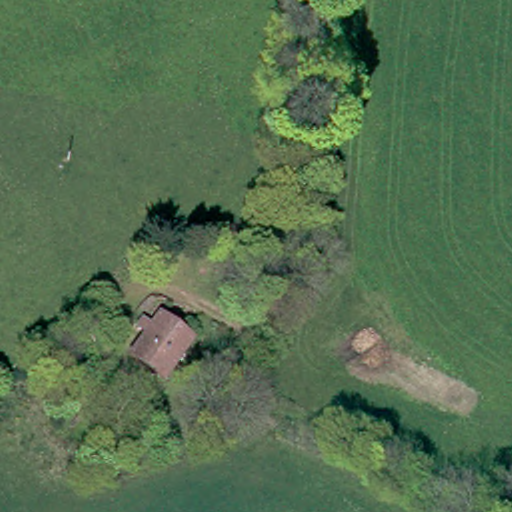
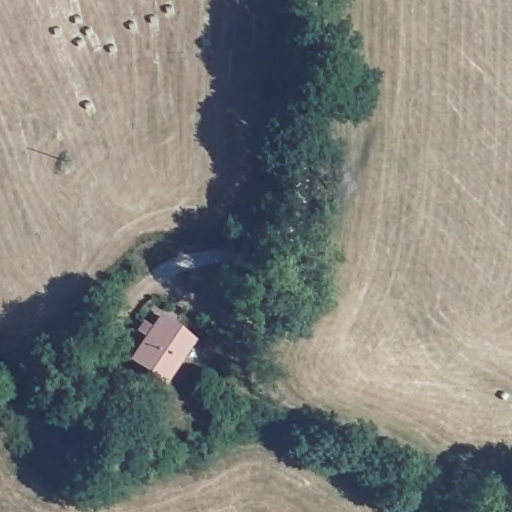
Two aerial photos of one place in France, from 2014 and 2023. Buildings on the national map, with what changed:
unchanged [(187,338),(164,375),(125,353),(151,314),(187,338)]

